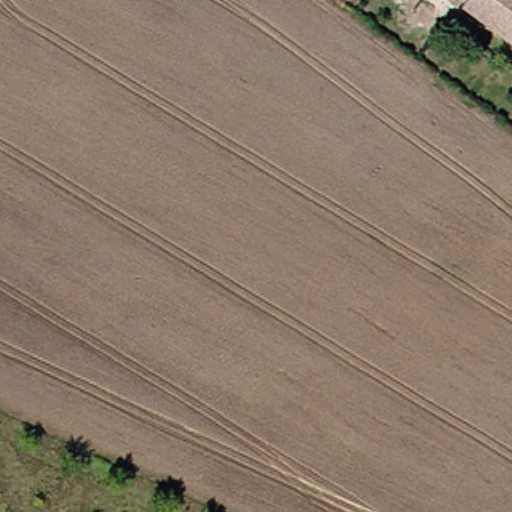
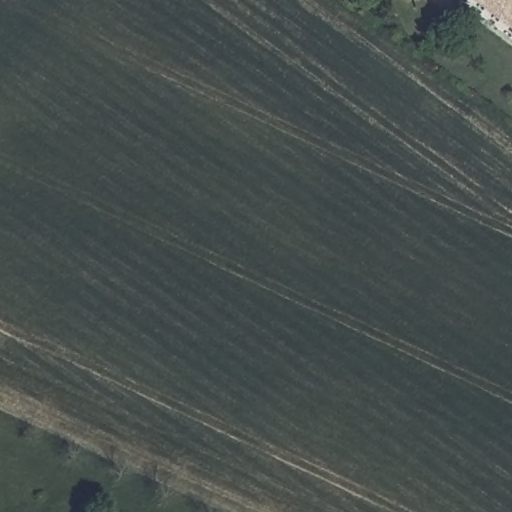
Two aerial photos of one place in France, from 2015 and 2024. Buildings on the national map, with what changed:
unchanged [(467,0),(512,0),(512,47),(461,8),(467,0)]

